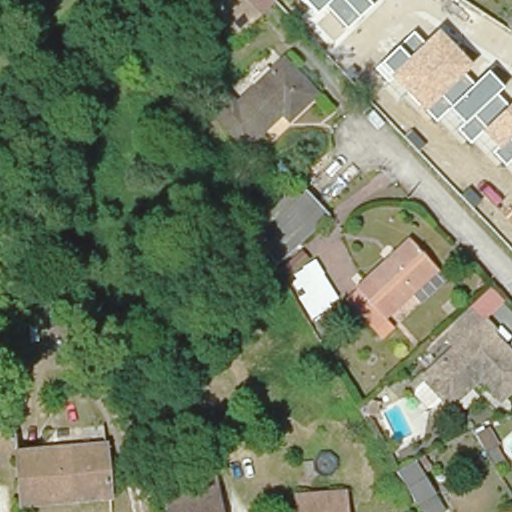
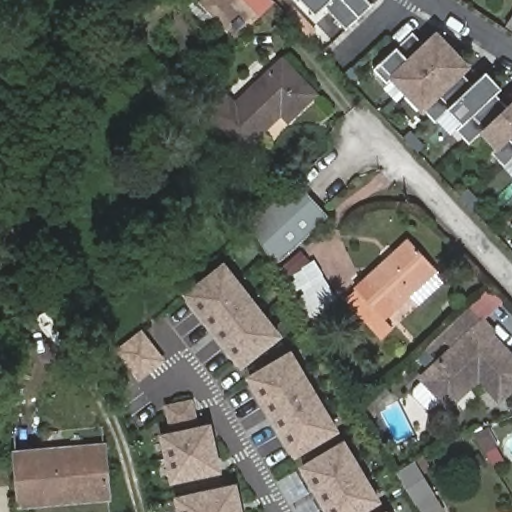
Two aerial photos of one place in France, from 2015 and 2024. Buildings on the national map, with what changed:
unchanged [(268,6),(228,41),(192,1),(192,0),(262,0),(268,6)]
unchanged [(347,29),(327,6),(317,16),(302,0),(368,0),(372,5),(347,29)]
demolished [(502,30),(512,36),(512,72),(405,0),(458,0),(502,30)]
unchanged [(512,13),(512,36),(502,30),(512,13)]
unchanged [(414,34),(424,44),(437,31),(470,67),(462,74),(474,85),(487,72),(503,89),(497,96),(508,108),(512,103),(512,159),(505,166),(493,154),(499,150),(482,133),(470,145),(456,130),(462,125),(448,111),(435,123),(392,76),(387,81),(375,70),(414,34)]
unchanged [(320,87),(294,110),(287,104),(265,124),(247,140),(223,114),(241,98),(288,53),(320,87)]
unchanged [(290,177),(322,213),(268,263),(244,221),(290,177)]
unchanged [(408,243),(435,270),(382,322),(356,294),(408,243)]
new [(243,369),(183,296),(224,261),(284,336),(243,369)]
unchanged [(483,313),(493,324),(491,327),(512,350),(512,383),(496,398),(477,376),(445,404),(417,371),(483,313)]
new [(140,334),(162,361),(139,380),(116,352),(140,334)]
new [(292,350),(341,431),(295,459),(246,377),(292,350)]
new [(190,402),(194,422),(169,427),(165,408),(190,402)]
new [(211,423),(222,473),(171,483),(159,434),(211,423)]
unchanged [(40,438),(99,433),(101,453),(41,458),(40,438)]
new [(382,503),(366,512),(327,512),(300,466),(345,440),(382,503)]
unchanged [(412,460),(430,449),(440,463),(422,475),(412,460)]
unchanged [(101,453),(107,452),(111,499),(19,508),(15,461),(41,458),(101,453)]
demolished [(167,512),(162,485),(213,477),(219,512),(167,512)]
demolished [(331,479),(335,478),(337,484),(332,485),(331,479)]
unchanged [(428,482),(446,511),(443,512),(421,512),(409,492),(428,482)]
new [(243,512),(176,512),(173,496),(237,483),(243,512)]
demolished [(296,495),(343,492),(345,512),(296,512),(295,495),(296,495)]
new [(388,512),(382,512),(387,510),(388,512)]

